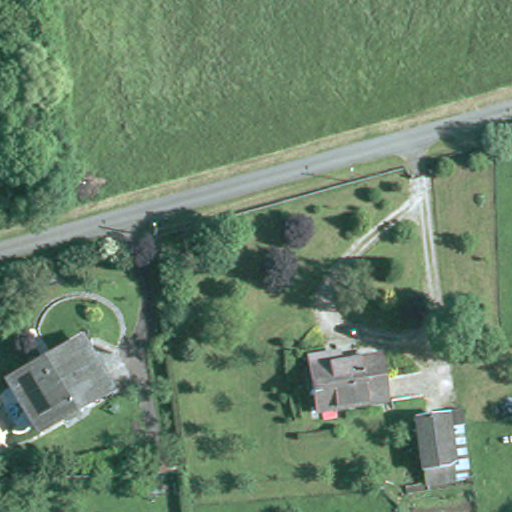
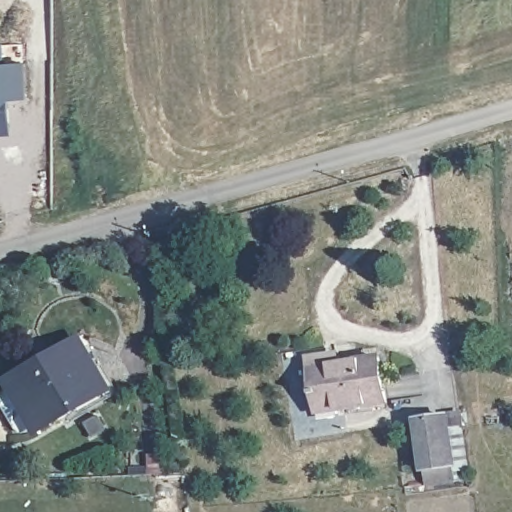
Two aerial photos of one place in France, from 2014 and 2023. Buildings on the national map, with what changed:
new [(28,96),(10,98),(12,133),(0,133),(0,65),(27,64),(28,96)]
unchanged [(87,367),(95,363),(111,390),(42,431),(13,383),(75,346),(87,367)]
unchanged [(328,355),(329,358),(337,357),(339,364),(377,357),(384,402),(315,412),(307,358),(328,355)]
unchanged [(462,409),(464,421),(447,423),(455,476),(424,480),(415,416),(462,409)]

